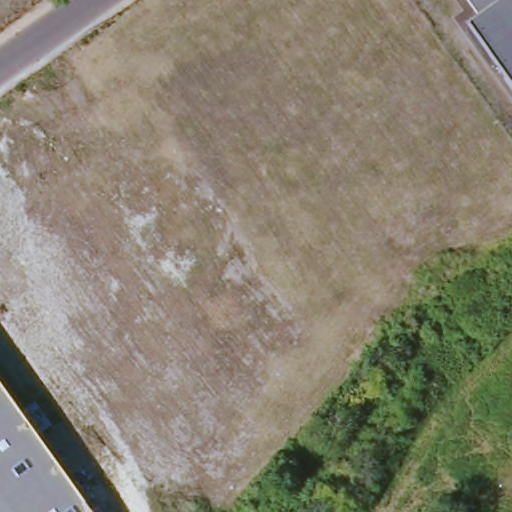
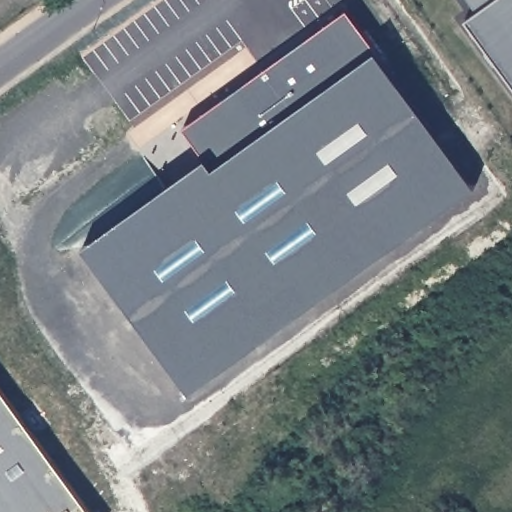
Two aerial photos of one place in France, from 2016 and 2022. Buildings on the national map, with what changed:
unchanged [(495,0),(512,0),(512,86),(466,21),(477,13),(495,0)]
unchanged [(495,0),(477,13),(468,0),(495,0)]
new [(194,169),(171,137),(336,20),(464,200),(175,406),(69,257),(194,169)]
unchanged [(92,512),(0,512),(0,387),(92,512)]

